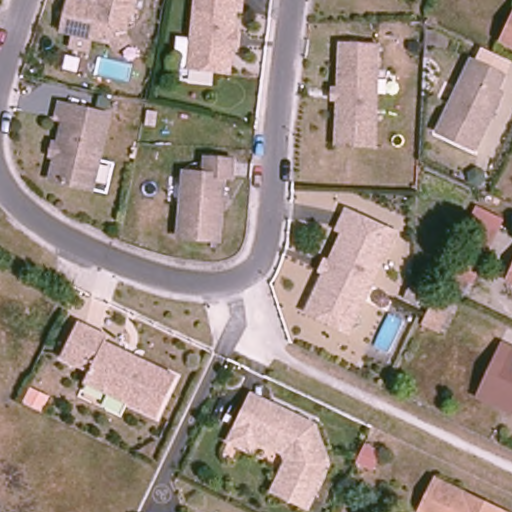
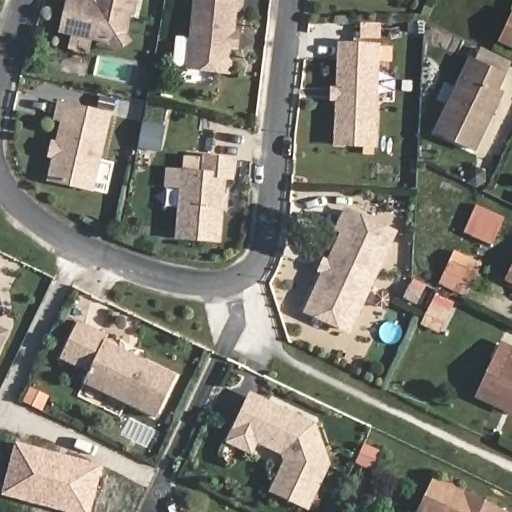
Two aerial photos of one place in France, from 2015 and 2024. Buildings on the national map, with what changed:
unchanged [(110,43),(59,30),(65,0),(85,0),(95,3),(96,0),(134,0),(135,3),(132,14),(128,16),(124,33),(130,42),(114,51),(110,43)]
unchanged [(229,46),(226,71),(184,66),(193,0),(240,0),(240,9),(234,8),(231,31),(236,33),(235,46),(229,46)]
unchanged [(505,44),(512,29),(512,47),(505,44)]
unchanged [(332,90),(339,90),(341,45),(379,47),(375,149),(335,146),(338,106),(331,106),(332,90)]
unchanged [(475,150),(437,131),(472,61),(505,76),(498,91),(503,93),(494,111),(491,117),(475,150)]
unchanged [(49,145),(54,146),(60,121),(53,120),(56,104),(106,116),(88,191),(46,181),(51,158),(46,157),(49,145)]
unchanged [(232,175),(225,174),(219,238),(178,234),(184,170),(205,171),(206,155),(233,158),(232,175)]
unchanged [(502,224),(488,252),(461,241),(475,212),(502,224)]
unchanged [(313,300),(324,275),(320,273),(324,263),(329,265),(344,234),(337,231),(346,214),(394,236),(348,333),(331,325),(306,314),(313,300)]
unchanged [(454,260),(479,273),(471,289),(447,276),(454,260)]
unchanged [(504,281),(507,275),(512,264),(512,285),(504,281)]
unchanged [(428,309),(445,317),(436,337),(418,329),(428,309)]
unchanged [(152,421),(79,386),(85,374),(56,360),(73,324),(103,339),(101,345),(121,354),(128,358),(172,379),(152,421)]
new [(0,353),(0,326),(11,331),(0,353)]
unchanged [(511,407),(483,394),(501,357),(512,361),(512,403),(511,407)]
unchanged [(327,466),(306,509),(270,493),(285,464),(281,454),(255,442),(251,451),(228,439),(234,426),(246,401),(248,397),(266,405),(313,426),(327,466)]
new [(91,512),(65,512),(1,495),(15,441),(103,465),(91,512)]
unchanged [(360,448),(375,455),(368,469),(354,462),(360,448)]
unchanged [(438,481),(503,512),(423,512),(438,481)]

